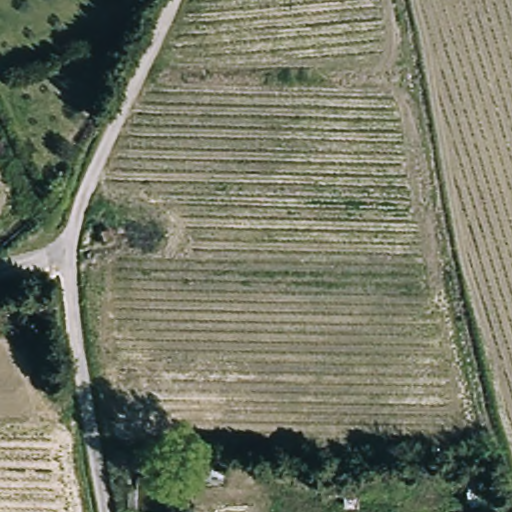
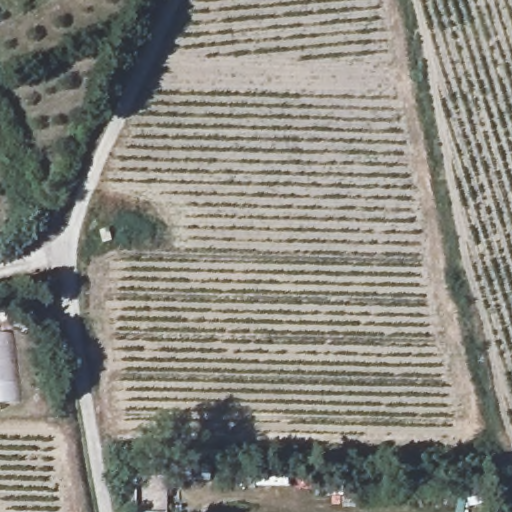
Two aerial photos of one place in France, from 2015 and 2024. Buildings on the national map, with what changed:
unchanged [(108,231),(111,242),(104,244),(101,233),(108,231)]
new [(18,402),(0,404),(0,335),(11,333),(18,402)]
unchanged [(163,501),(128,499),(126,482),(138,481),(139,472),(163,472),(163,501)]

